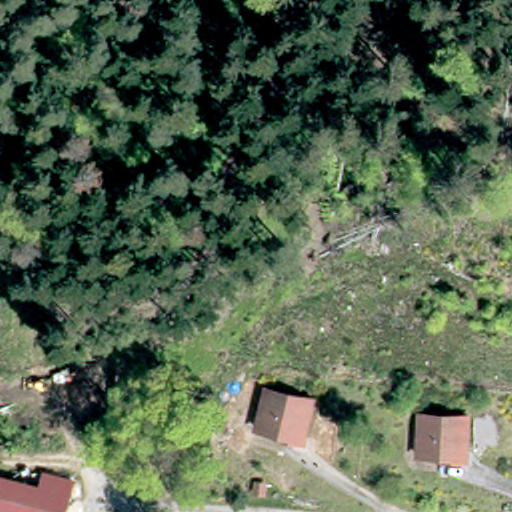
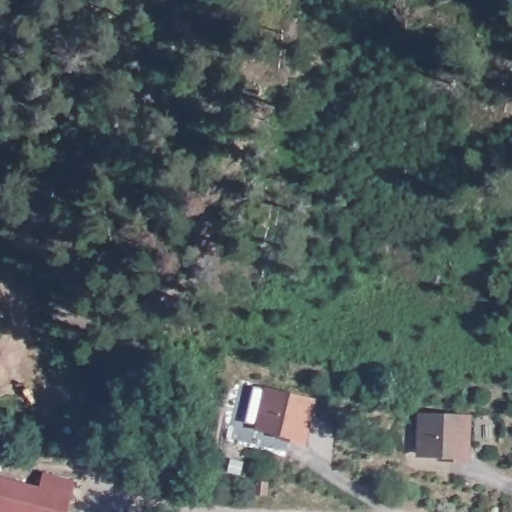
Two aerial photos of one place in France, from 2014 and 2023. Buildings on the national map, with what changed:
unchanged [(285,433),(254,427),(265,387),(313,398),(308,415),(304,428),(301,437),(285,433)]
unchanged [(447,447),(415,446),(418,408),(466,408),(464,438),(463,448),(447,447)]
unchanged [(47,494),(52,479),(71,484),(81,487),(76,502),(73,510),(73,512),(0,512),(0,482),(47,494)]
unchanged [(263,498),(265,490),(265,489),(273,491),(271,499),(263,498)]

